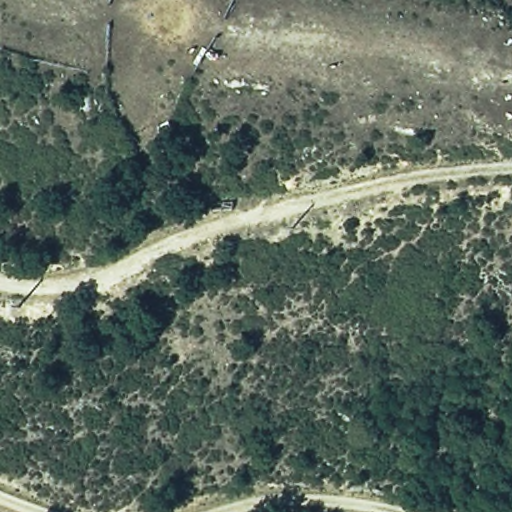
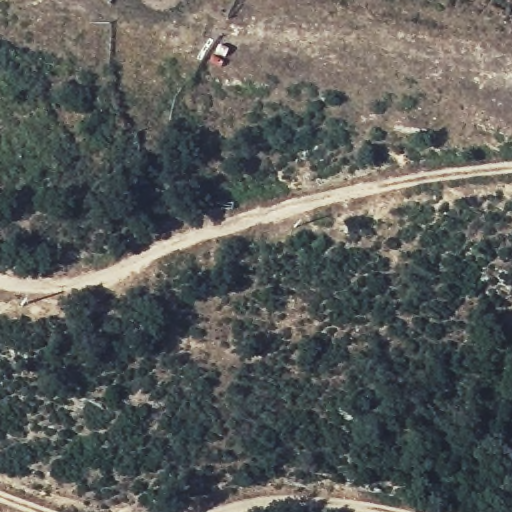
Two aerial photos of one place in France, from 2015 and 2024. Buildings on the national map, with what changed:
unchanged [(165,190),(132,201),(126,182),(154,171),(165,190)]

